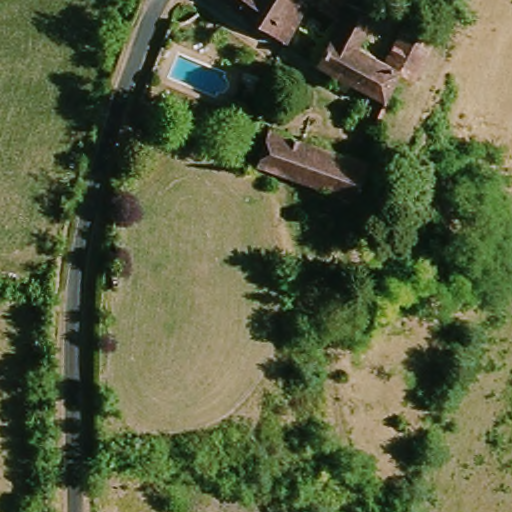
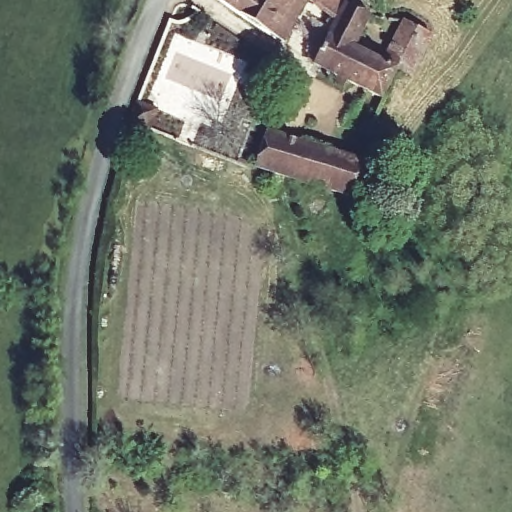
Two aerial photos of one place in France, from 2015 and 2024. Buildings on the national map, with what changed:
unchanged [(284,41),(221,0),(312,0),(284,41)]
unchanged [(361,86),(357,93),(334,77),(338,70),(323,57),(343,14),(322,0),(397,0),(407,2),(438,19),(415,67),(398,59),(379,99),(361,86)]
unchanged [(253,165),(266,127),(366,162),(352,198),(279,172),(253,165)]

